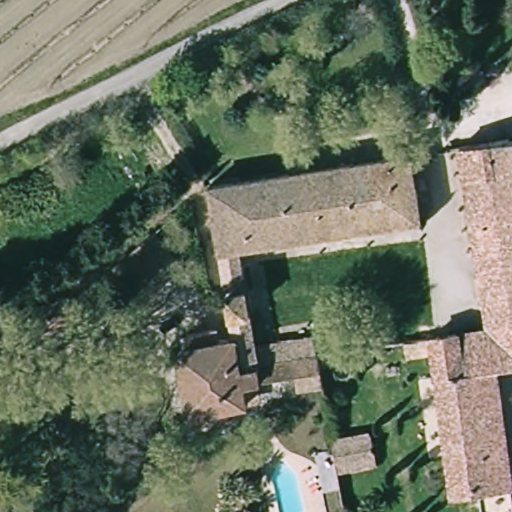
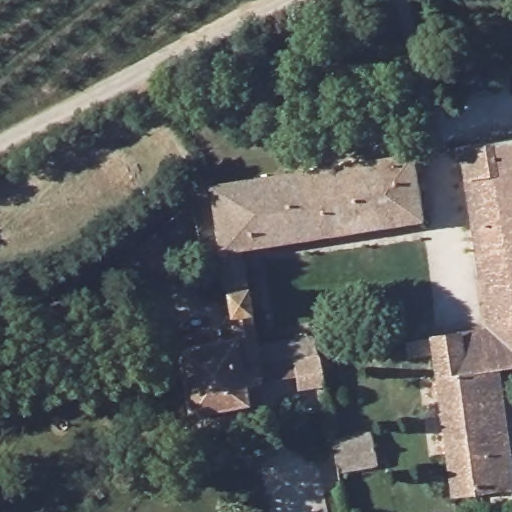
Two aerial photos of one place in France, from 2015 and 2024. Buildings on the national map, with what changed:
unchanged [(512,390),(499,392),(495,368),(476,371),(467,330),(484,327),(456,150),(512,141),(512,390)]
unchanged [(223,254),(219,254),(210,185),(428,155),(432,176),(417,177),(425,221),(242,250),(258,354),(313,346),(313,357),(244,367),(237,337),(229,291),(223,254)]
unchanged [(159,226),(173,240),(114,307),(96,291),(159,226)]
unchanged [(40,308),(43,325),(17,328),(15,312),(40,308)]
unchanged [(476,371),(495,489),(512,487),(512,512),(480,512),(477,495),(462,497),(458,460),(445,462),(426,342),(425,336),(467,330),(476,371)]
unchanged [(244,367),(313,357),(320,357),(325,391),(299,395),(298,383),(263,389),(263,401),(191,417),(181,359),(184,347),(237,337),(244,367)]
unchanged [(333,432),(381,424),(385,454),(343,480),(333,432)]

